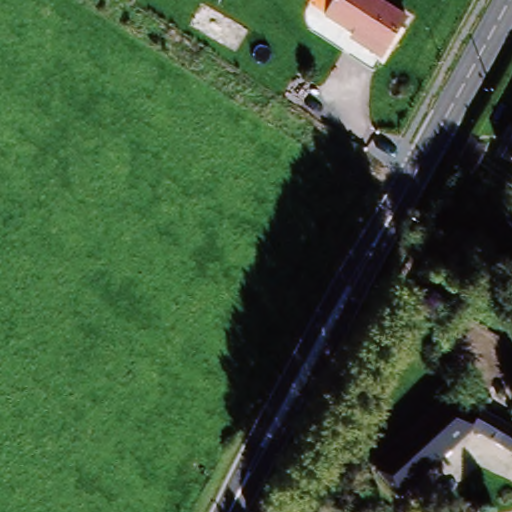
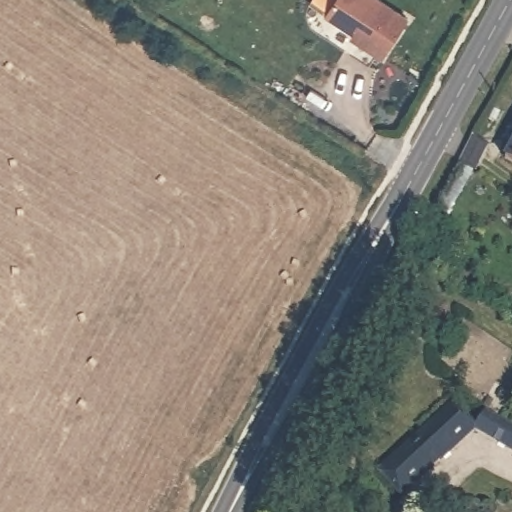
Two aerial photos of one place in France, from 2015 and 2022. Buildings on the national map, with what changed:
unchanged [(383,54),(351,38),(352,29),(329,14),(339,0),(385,0),(410,15),(383,54)]
unchanged [(505,166),(512,154),(512,170),(505,166)]
unchanged [(512,429),(512,455),(461,423),(471,406),(512,429)]
unchanged [(408,506),(385,491),(440,409),(461,423),(408,506)]

